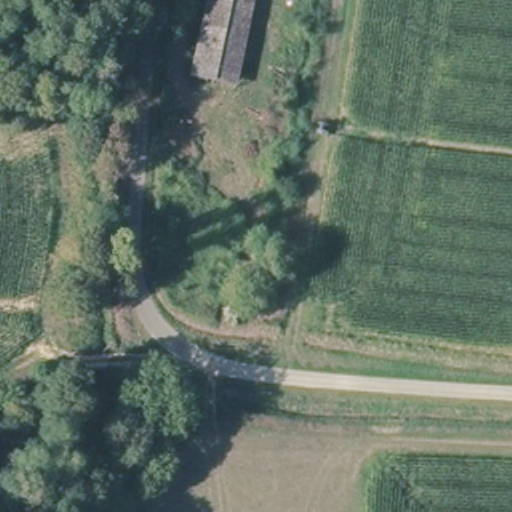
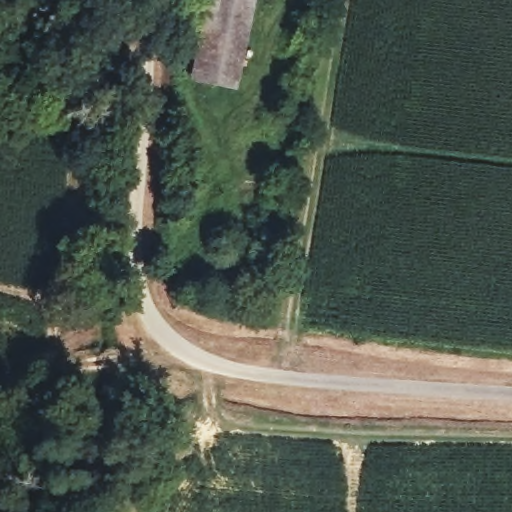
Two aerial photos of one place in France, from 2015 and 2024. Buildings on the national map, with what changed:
unchanged [(189,80),(206,0),(259,0),(238,90),(189,80)]

